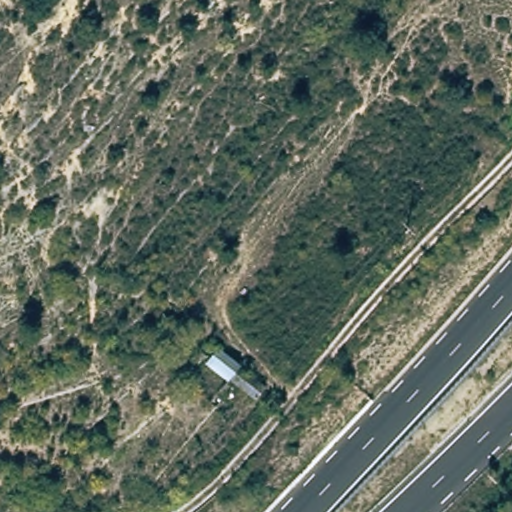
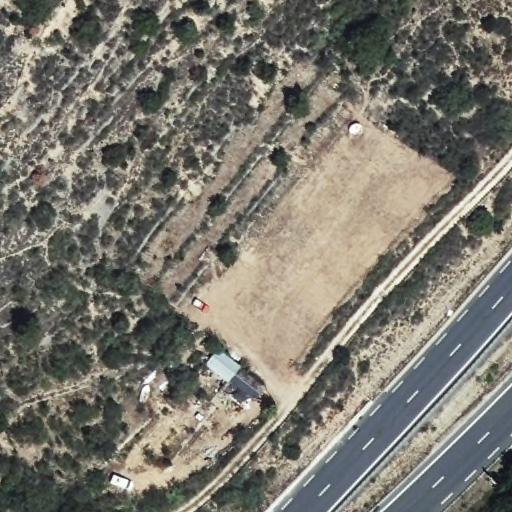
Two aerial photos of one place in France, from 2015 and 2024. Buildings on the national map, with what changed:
unchanged [(203,371),(217,352),(241,370),(225,386),(203,371)]

